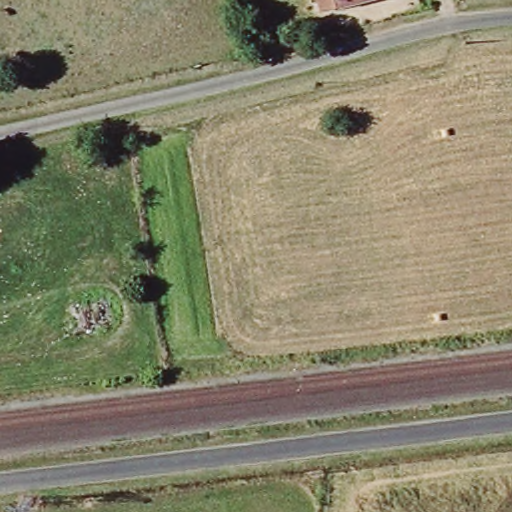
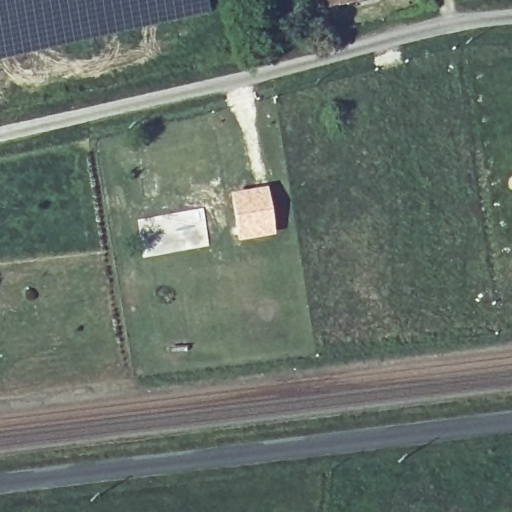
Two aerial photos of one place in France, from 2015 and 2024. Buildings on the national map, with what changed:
new [(0,61),(0,0),(205,0),(209,16),(0,61)]
unchanged [(312,0),(366,0),(314,13),(312,0)]
new [(265,187),(274,236),(236,244),(227,194),(265,187)]

